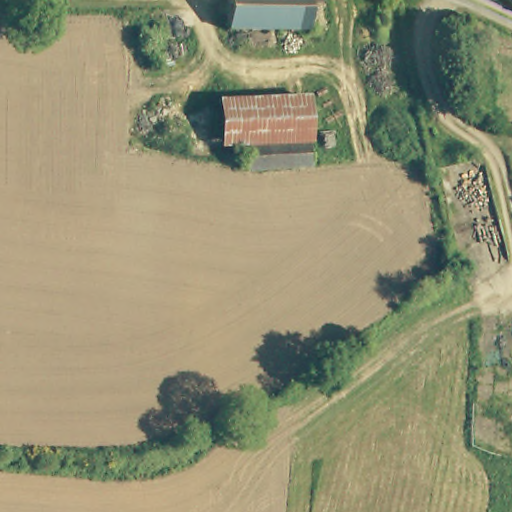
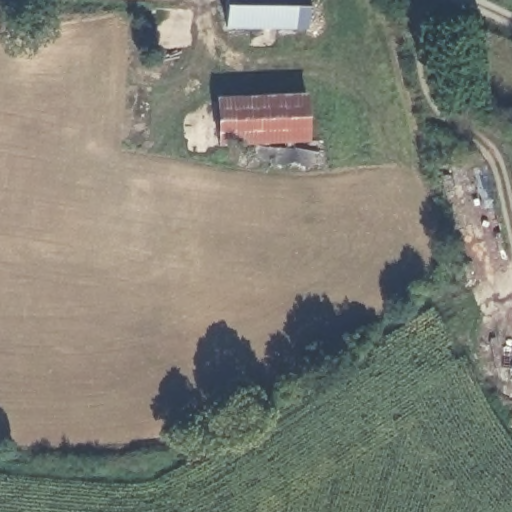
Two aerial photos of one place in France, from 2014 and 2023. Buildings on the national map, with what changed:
unchanged [(307,24),(277,24),(277,40),(251,40),(251,24),(227,24),(227,0),(308,0),(307,24)]
unchanged [(247,143),(221,144),(220,99),(308,97),(311,141),(247,143)]
unchanged [(311,141),(312,162),(312,165),(247,167),(247,143),(311,141)]

